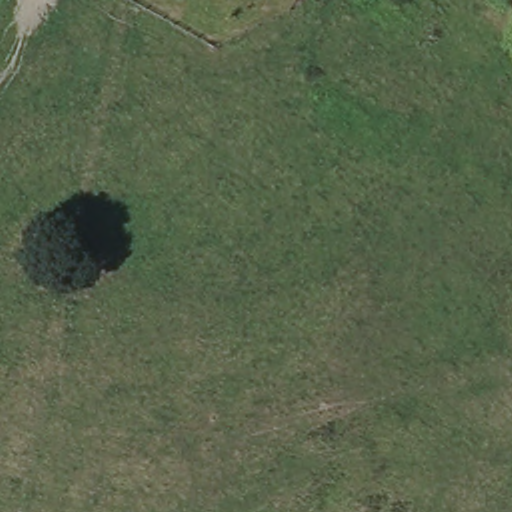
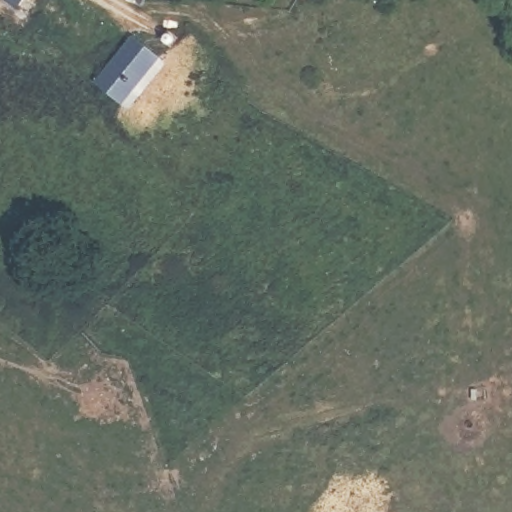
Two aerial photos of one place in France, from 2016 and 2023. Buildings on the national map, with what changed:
new [(17,10),(4,0),(25,0),(17,10)]
new [(165,64),(125,112),(94,86),(131,37),(165,64)]

